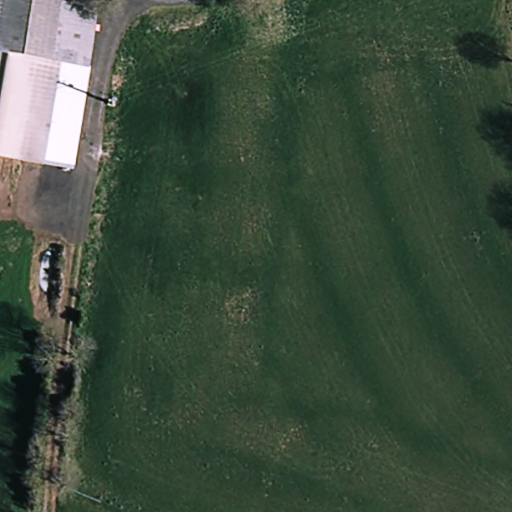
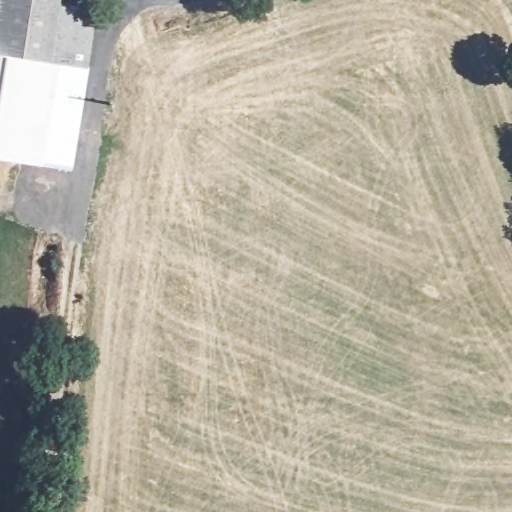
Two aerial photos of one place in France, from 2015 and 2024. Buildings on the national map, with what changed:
unchanged [(60,0),(60,5),(99,11),(89,70),(74,170),(0,159),(0,0),(60,0)]
unchanged [(26,489),(24,512),(0,512),(0,487),(26,489)]

